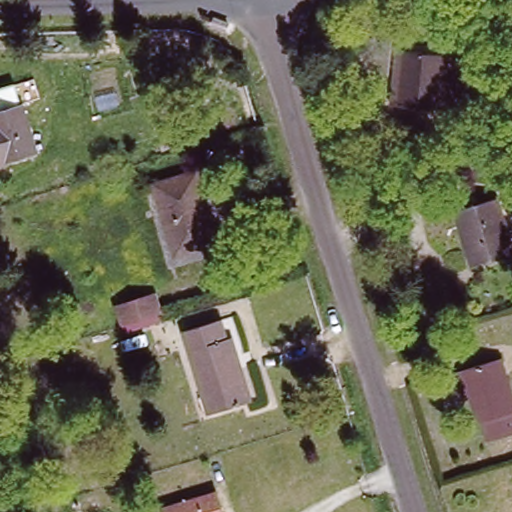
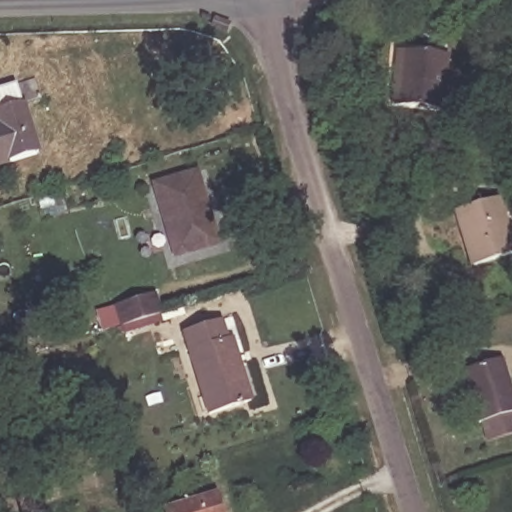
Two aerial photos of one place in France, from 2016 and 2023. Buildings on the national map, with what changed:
unchanged [(440,107),(390,98),(394,78),(399,42),(407,43),(451,50),(440,107)]
unchanged [(448,95),(450,78),(470,81),(467,97),(448,95)]
unchanged [(0,110),(22,104),(37,156),(0,167),(0,110)]
unchanged [(150,182),(194,171),(215,242),(172,254),(150,182)]
unchanged [(512,258),(512,260),(474,271),(457,219),(496,207),(512,258)]
unchanged [(124,323),(117,306),(156,293),(162,312),(124,323)]
unchanged [(230,367),(237,364),(250,401),(207,415),(179,337),(216,325),(230,367)]
unchanged [(469,392),(461,395),(452,367),(460,365),(498,355),(512,400),(512,405),(510,406),(512,412),(512,426),(486,434),(480,415),(477,416),(469,392)]
unchanged [(217,490),(223,512),(159,512),(157,508),(217,490)]

